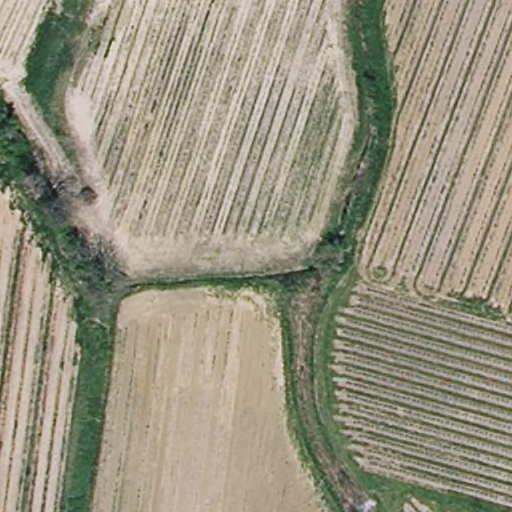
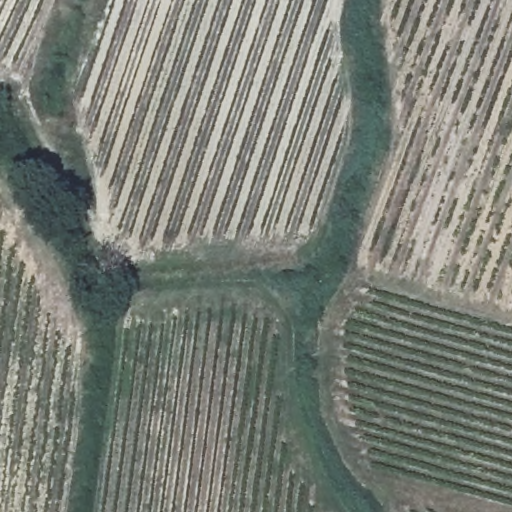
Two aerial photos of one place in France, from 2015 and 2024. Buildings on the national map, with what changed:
[]

